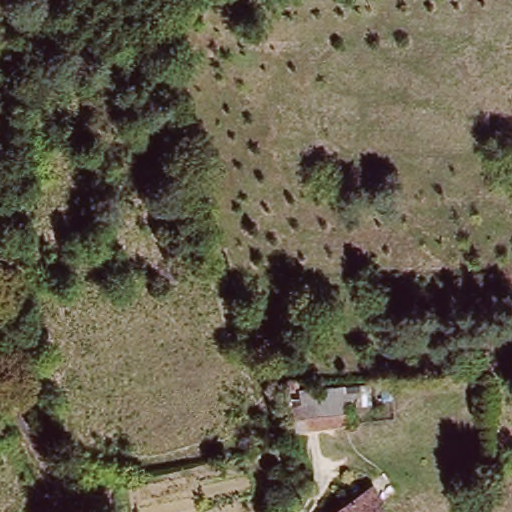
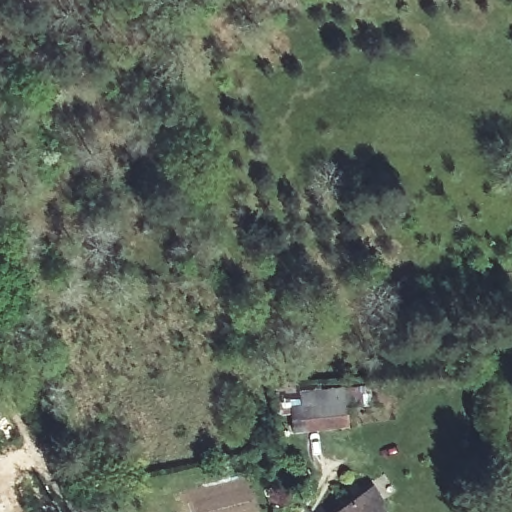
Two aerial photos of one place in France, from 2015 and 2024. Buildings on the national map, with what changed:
unchanged [(309,429),(310,405),(310,393),(352,392),(353,405),(353,430),(309,429)]
unchanged [(381,490),(392,503),(387,507),(391,512),(354,512),(381,490)]

